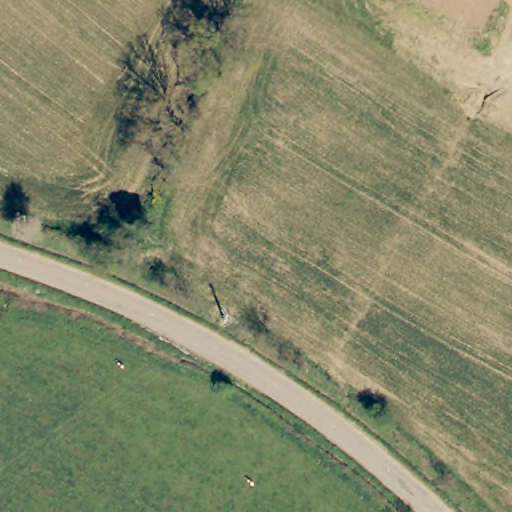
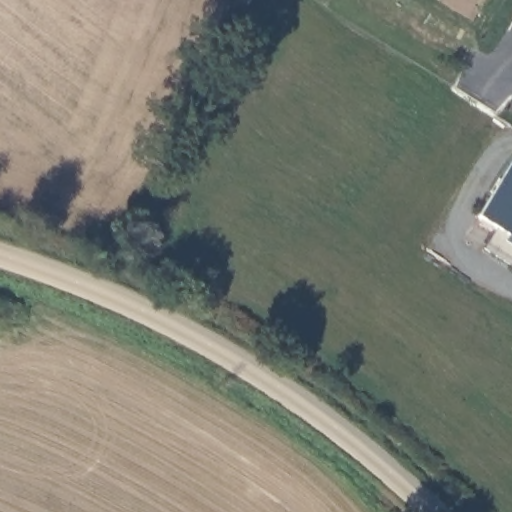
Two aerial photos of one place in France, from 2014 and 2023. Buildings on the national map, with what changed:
new [(512,165),(512,247),(506,243),(511,237),(479,218),(512,165)]

